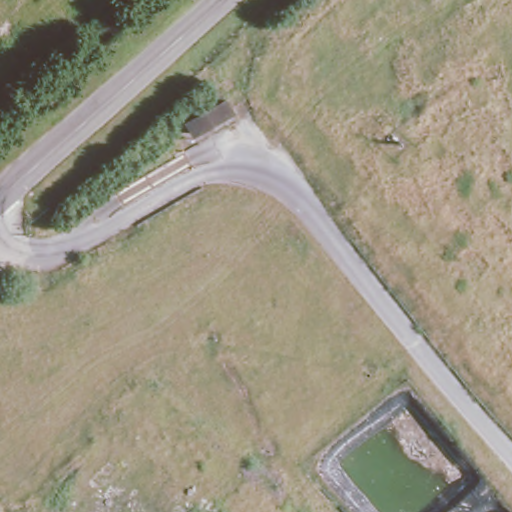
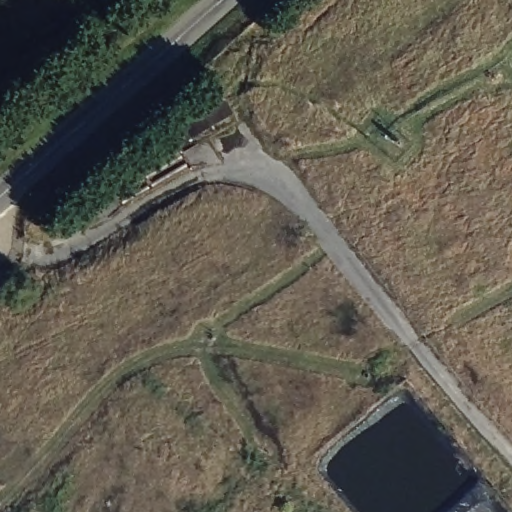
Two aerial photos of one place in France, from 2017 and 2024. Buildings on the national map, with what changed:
unchanged [(189,133),(183,118),(223,94),(232,109),(189,133)]

